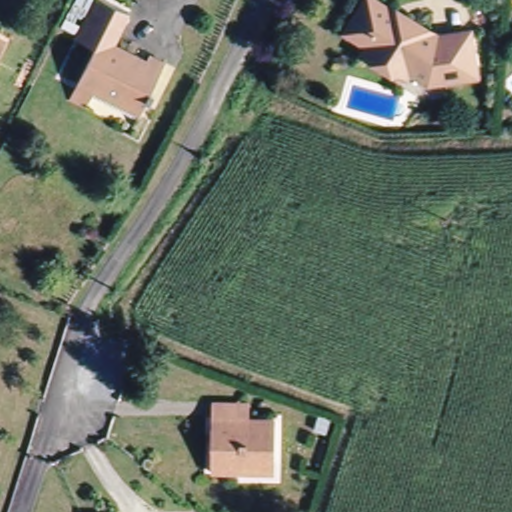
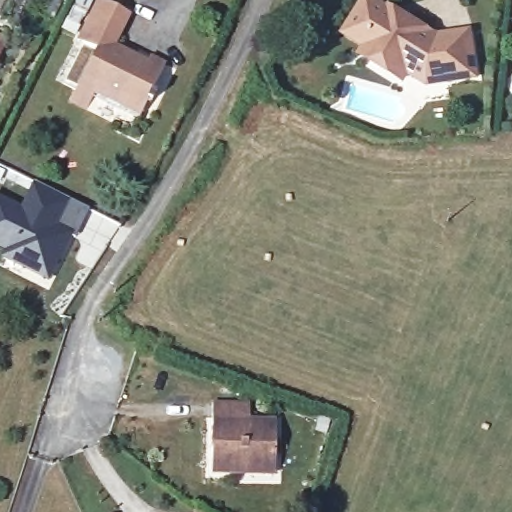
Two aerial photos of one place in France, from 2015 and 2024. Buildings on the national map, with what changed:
unchanged [(78,34),(95,0),(111,0),(131,10),(115,41),(101,34),(96,44),(78,34)]
unchanged [(423,84),(404,72),(399,80),(357,53),(362,46),(341,33),(361,0),(366,0),(391,15),(390,18),(398,23),(400,19),(413,27),(430,38),(464,33),(471,77),(423,84)]
unchanged [(155,81),(158,83),(155,90),(151,89),(140,111),(94,87),(86,104),(70,96),(96,44),(101,34),(115,41),(149,58),(151,52),(166,59),(155,81)]
unchanged [(0,35),(5,37),(0,47),(0,35)]
new [(26,185),(14,179),(17,173),(29,179),(26,185)]
new [(31,184),(28,182),(29,179),(119,224),(111,240),(81,225),(51,282),(5,258),(7,253),(0,248),(0,195),(20,205),(31,184)]
unchanged [(211,473),(212,420),(212,405),(248,405),(248,420),(276,421),(275,474),(211,473)]

